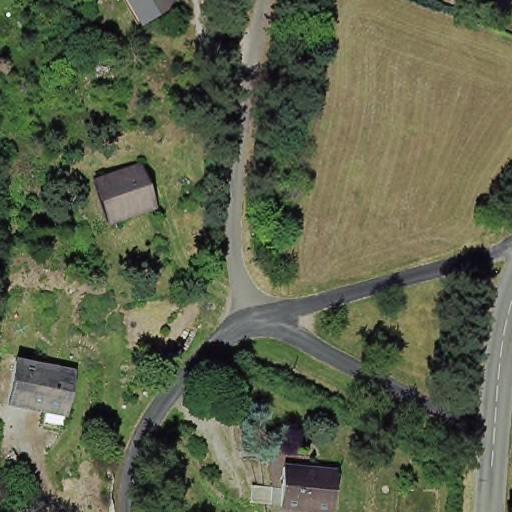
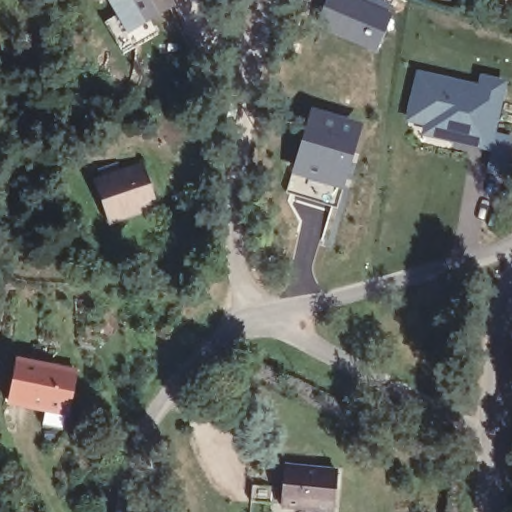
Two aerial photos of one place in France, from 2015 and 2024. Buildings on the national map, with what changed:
new [(127,26),(113,0),(133,0),(143,17),(127,26)]
unchanged [(147,24),(134,0),(171,0),(174,6),(147,24)]
new [(373,48),(320,22),(330,0),(347,0),(385,17),(373,48)]
new [(478,87),(479,74),(508,80),(495,150),(422,140),(424,126),(406,123),(415,75),(478,87)]
new [(361,121),(336,208),(285,193),(309,105),(361,121)]
unchanged [(110,226),(96,183),(104,180),(146,166),(160,209),(118,224),(110,226)]
unchanged [(41,425),(44,407),(9,401),(15,359),(75,370),(69,410),(66,428),(41,425)]
unchanged [(271,486),(283,488),(285,470),(339,474),(333,512),(317,512),(281,507),(268,506),(271,486)]

